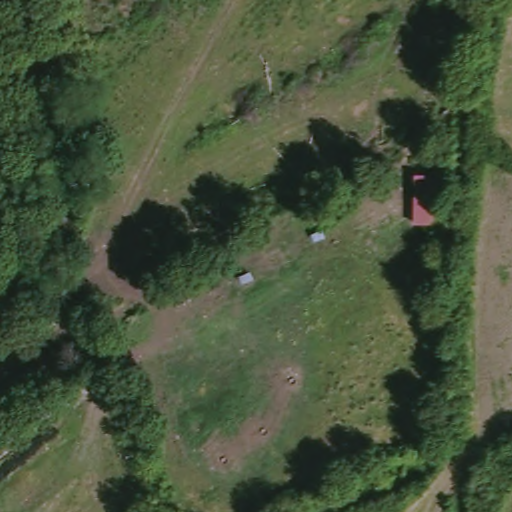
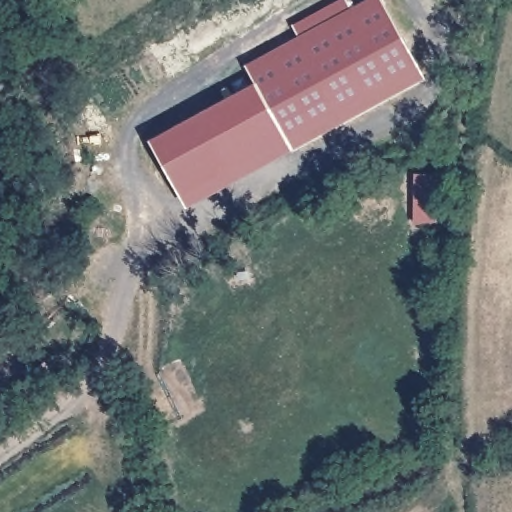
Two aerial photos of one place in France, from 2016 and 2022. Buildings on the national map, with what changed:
new [(154,141),(258,83),(249,65),(368,0),(382,0),(425,79),(292,150),(188,208),(154,141)]
unchanged [(445,176),(443,226),(418,225),(419,176),(445,176)]

